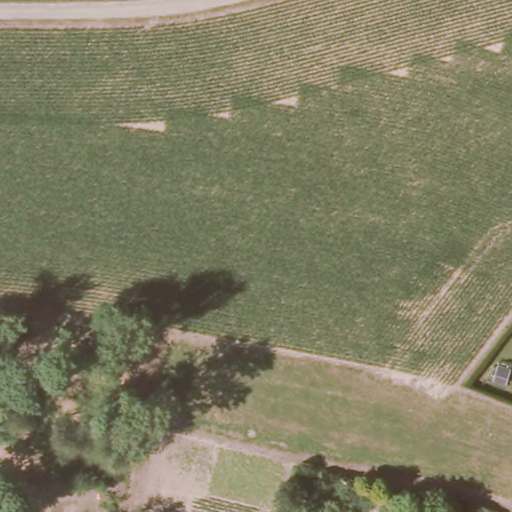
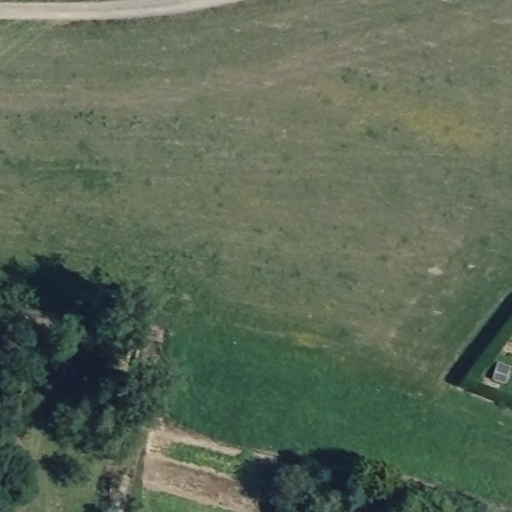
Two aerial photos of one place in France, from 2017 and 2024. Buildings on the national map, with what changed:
unchanged [(509,370),(506,382),(494,378),(497,367),(509,370)]

